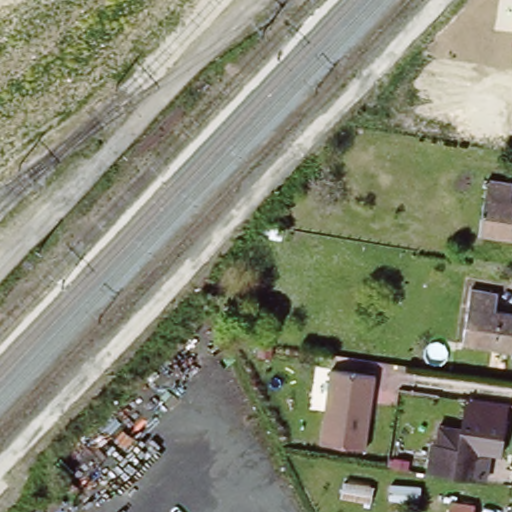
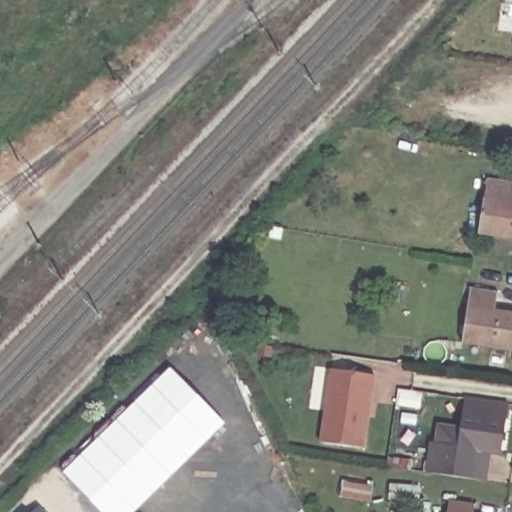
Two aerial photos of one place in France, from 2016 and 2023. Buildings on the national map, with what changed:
unchanged [(512,183),(512,198),(512,201),(512,238),(478,233),(487,180),(512,183)]
unchanged [(498,293),(495,311),(512,314),(512,351),(462,342),(470,290),(498,293)]
unchanged [(372,371),(363,445),(320,438),(328,364),(372,371)]
new [(224,423),(133,512),(101,512),(62,472),(170,367),(224,423)]
unchanged [(479,481),(428,473),(432,442),(435,442),(437,424),(460,427),(465,397),(508,405),(501,452),(490,452),(485,482),(479,481)]
unchanged [(475,505),(474,512),(449,512),(450,502),(475,505)]
unchanged [(43,512),(32,512),(38,507),(43,512)]

